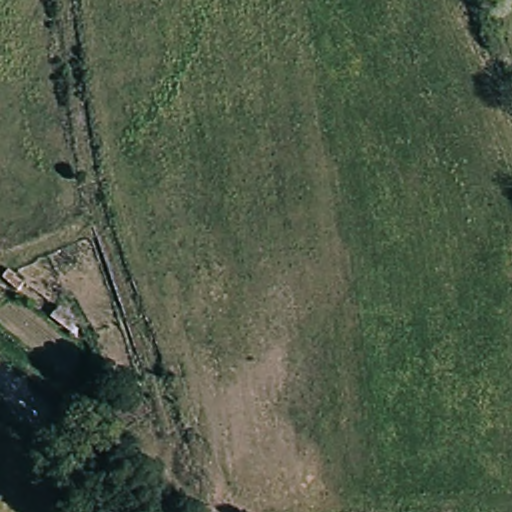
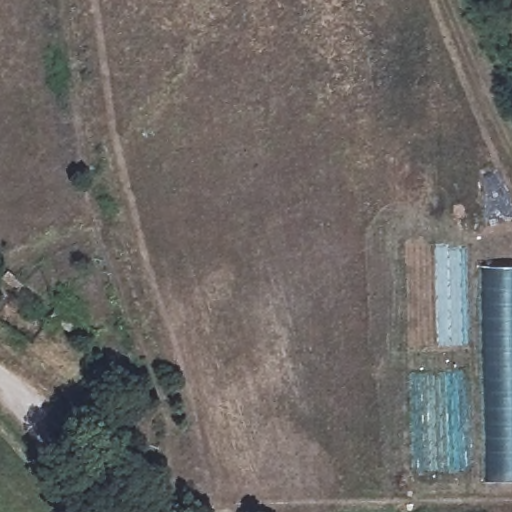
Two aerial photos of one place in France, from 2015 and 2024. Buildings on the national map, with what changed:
new [(512,264),(512,480),(478,479),(477,264),(512,264)]

